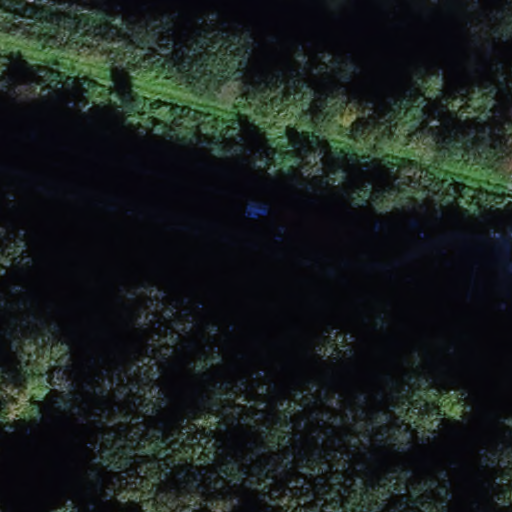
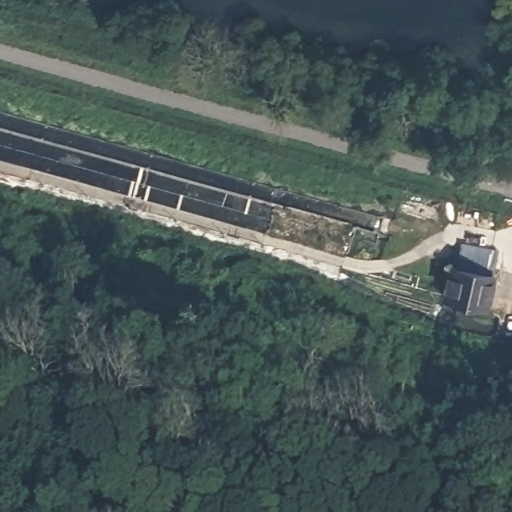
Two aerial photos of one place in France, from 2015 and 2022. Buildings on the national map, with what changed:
unchanged [(402,189),(445,203),(436,228),(398,216),(402,189)]
unchanged [(363,228),(349,257),(270,233),(277,206),(363,228)]
unchanged [(480,296),(441,287),(448,258),(489,267),(480,296)]

